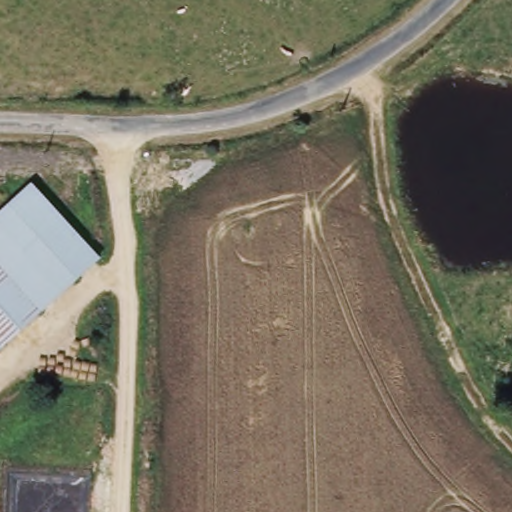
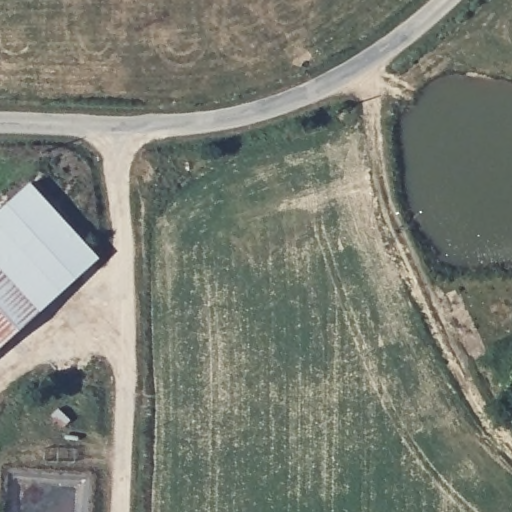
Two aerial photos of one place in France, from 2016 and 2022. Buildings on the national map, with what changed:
unchanged [(101,258),(102,258),(101,259),(43,311),(0,263),(0,216),(35,184),(101,258)]
unchanged [(6,345),(0,338),(0,263),(43,311),(6,345)]
unchanged [(0,338),(6,345),(0,351),(0,338)]

